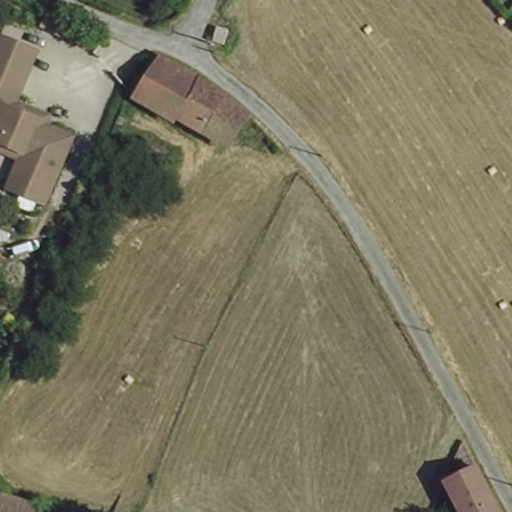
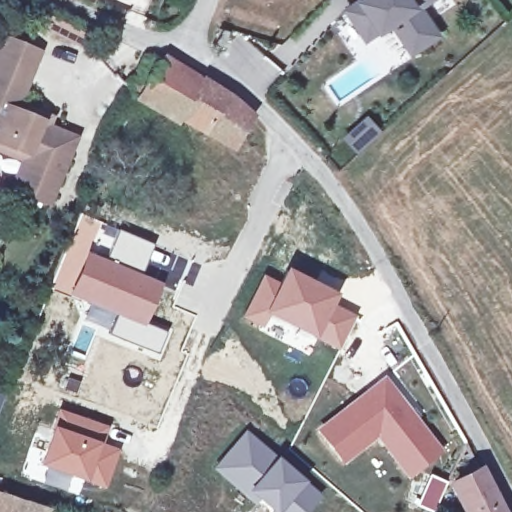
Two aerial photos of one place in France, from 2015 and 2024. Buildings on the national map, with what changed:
new [(443,32),(416,50),(395,20),(370,37),(351,8),(363,0),(431,0),(424,4),(443,32)]
unchanged [(35,45),(13,99),(69,128),(40,197),(0,183),(9,155),(0,153),(0,31),(35,45)]
unchanged [(173,72),(202,90),(211,96),(230,111),(248,127),(235,156),(133,102),(146,69),(168,81),(173,72)]
new [(381,131),(360,150),(348,136),(369,117),(381,131)]
unchanged [(173,151),(169,162),(148,154),(152,143),(173,151)]
new [(80,211),(103,222),(93,250),(89,250),(69,296),(50,287),(80,211)]
new [(116,228),(154,243),(142,273),(103,255),(116,228)]
new [(89,250),(93,250),(103,255),(142,273),(162,281),(146,322),(145,325),(113,316),(69,296),(89,250)]
new [(262,272),(278,280),(285,266),(338,292),(333,303),(313,339),(269,317),(258,328),(239,317),(262,272)]
new [(333,303),(355,314),(337,350),(313,339),(333,303)]
new [(113,316),(145,325),(146,322),(168,331),(159,356),(107,333),(113,316)]
new [(407,479),(376,439),(343,465),(315,429),(384,375),(443,451),(407,479)]
new [(4,393),(0,404),(0,392),(4,393)]
new [(58,408),(109,425),(104,443),(53,426),(58,408)]
new [(53,426),(104,443),(119,448),(105,489),(39,466),(53,426)]
new [(244,428),(321,493),(305,512),(262,512),(211,468),(244,428)]
unchanged [(498,512),(457,512),(446,488),(475,468),(498,512)]
unchanged [(53,512),(0,512),(0,493),(53,512)]

